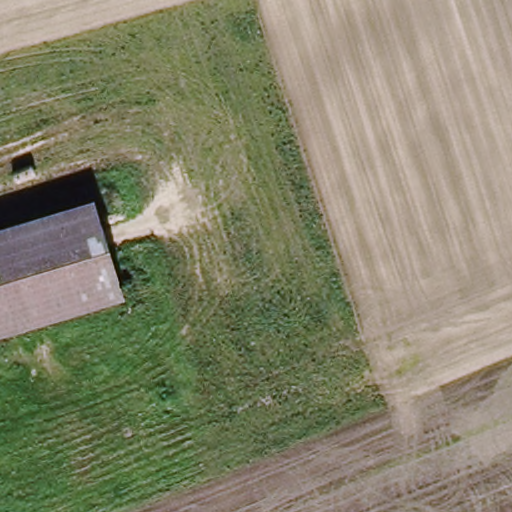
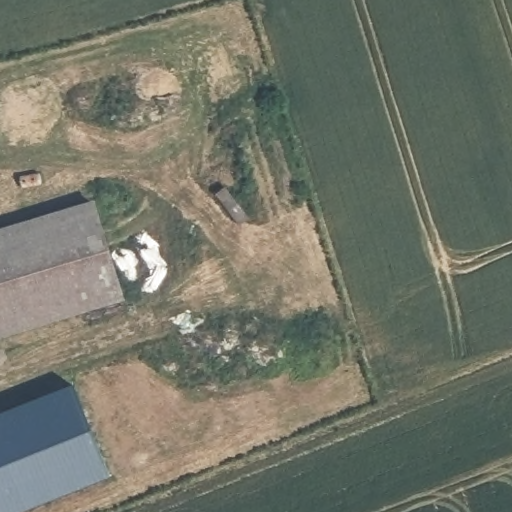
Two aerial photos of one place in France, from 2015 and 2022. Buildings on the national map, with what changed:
unchanged [(0,343),(0,231),(94,202),(126,306),(0,343)]
new [(113,478),(28,512),(0,512),(0,416),(77,386),(113,478)]

